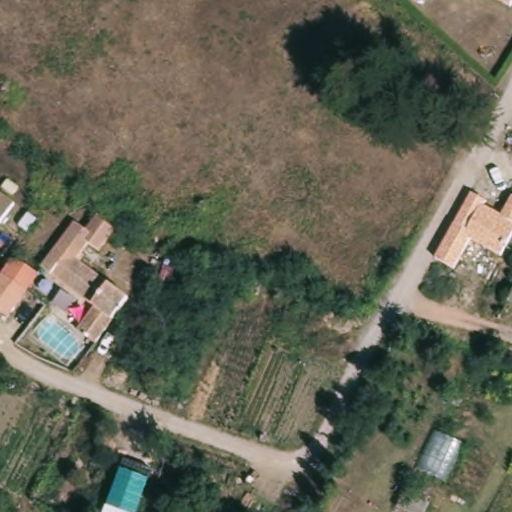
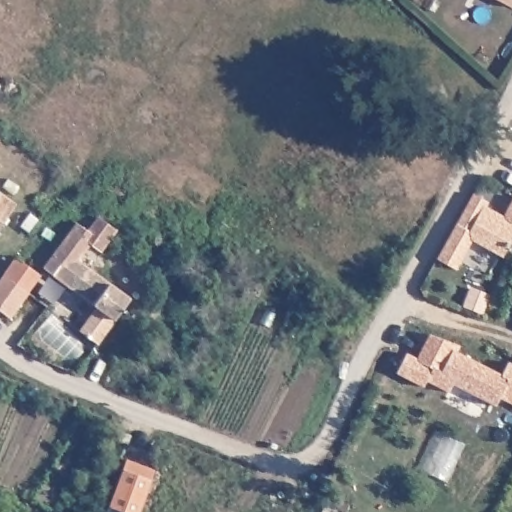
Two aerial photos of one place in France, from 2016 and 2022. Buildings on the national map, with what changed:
unchanged [(499,0),(512,0),(512,1),(510,5),(499,0)]
new [(59,170),(79,184),(79,195),(69,205),(47,194),(59,170)]
unchanged [(500,254),(471,236),(453,266),(436,257),(471,194),(486,201),(483,205),(501,215),(512,196),(512,234),(500,254)]
unchanged [(0,230),(0,197),(16,208),(0,230)]
unchanged [(100,252),(89,244),(95,235),(85,227),(97,214),(117,229),(100,252)]
unchanged [(97,341),(97,342),(80,330),(97,306),(44,267),(77,221),(95,235),(77,259),(130,297),(97,341)]
unchanged [(12,320),(0,311),(0,278),(16,256),(41,275),(12,320)]
unchanged [(140,313),(150,290),(165,296),(154,320),(140,313)]
unchanged [(509,297),(512,292),(512,299),(509,297)]
new [(406,355),(416,360),(431,330),(462,338),(456,351),(502,373),(508,360),(512,362),(512,402),(500,396),(496,404),(453,384),(449,392),(427,381),(423,388),(397,375),(406,355)]
unchanged [(138,512),(103,512),(122,464),(150,475),(138,512)]

